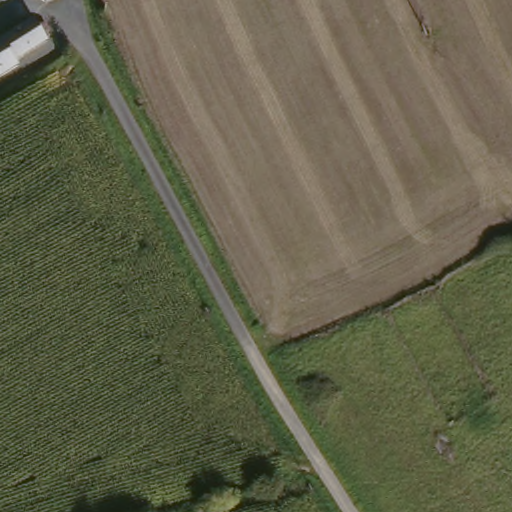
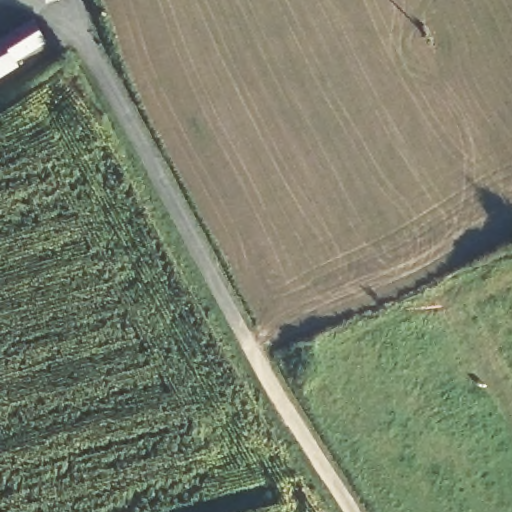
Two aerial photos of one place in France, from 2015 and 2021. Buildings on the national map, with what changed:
unchanged [(55,0),(48,5),(46,0),(56,0),(55,0)]
unchanged [(53,40),(23,61),(25,65),(0,82),(0,45),(39,19),(53,40)]

